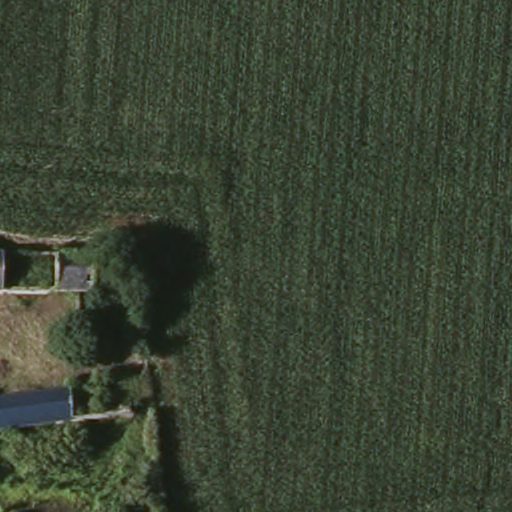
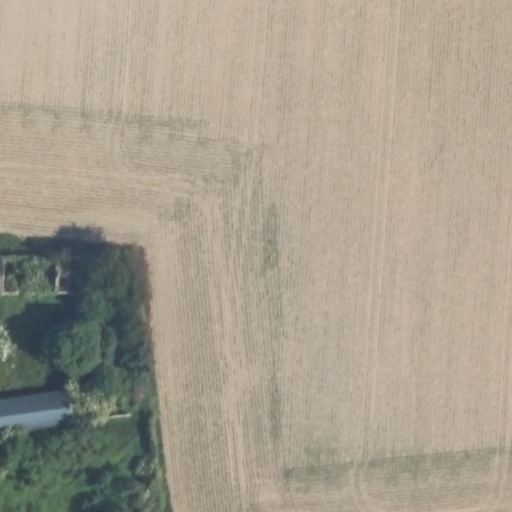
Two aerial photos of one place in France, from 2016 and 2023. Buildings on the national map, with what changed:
unchanged [(94,255),(94,316),(77,316),(77,296),(60,295),(60,255),(94,255)]
unchanged [(0,296),(0,257),(5,257),(5,296),(0,296)]
unchanged [(0,436),(0,397),(66,387),(74,427),(0,436)]

